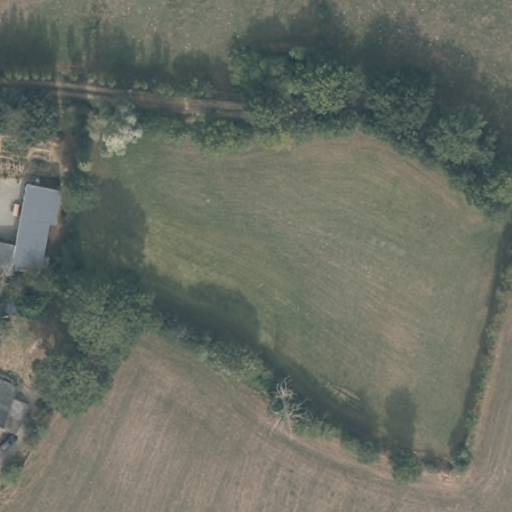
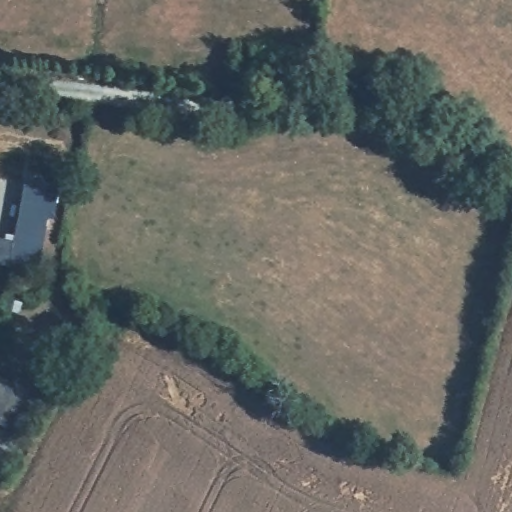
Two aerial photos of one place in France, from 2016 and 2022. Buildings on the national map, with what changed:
unchanged [(262,100),(211,89),(220,55),(222,43),(255,49),(254,60),(273,66),(267,100),(262,100)]
unchanged [(31,184),(62,191),(55,224),(49,222),(39,268),(12,262),(11,270),(0,267),(0,241),(17,245),(31,184)]
unchanged [(4,387),(0,394),(0,385),(4,387)]
unchanged [(10,411),(0,429),(0,407),(10,411)]

